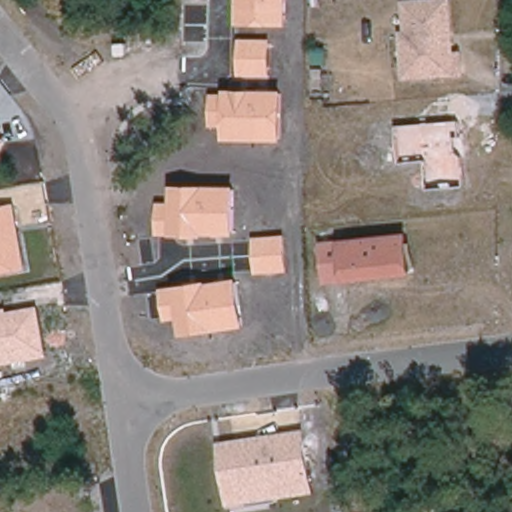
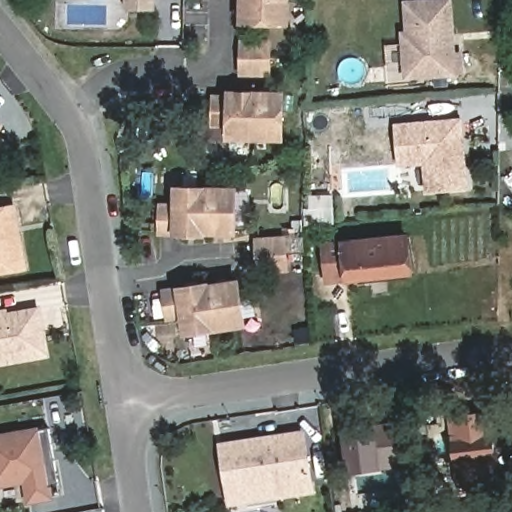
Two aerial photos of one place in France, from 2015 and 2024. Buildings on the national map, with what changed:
new [(126,7),(126,0),(157,0),(157,7),(126,7)]
unchanged [(288,24),(238,25),(238,0),(288,0),(288,24)]
unchanged [(449,2),(452,56),(459,55),(459,73),(406,77),(403,35),(407,34),(407,4),(449,2)]
unchanged [(270,76),(238,76),(239,39),(272,39),(270,76)]
unchanged [(227,95),(227,90),(285,90),(285,141),(226,140),(226,128),(209,127),(211,93),(227,95)]
unchanged [(428,188),(425,161),(399,163),(397,125),(460,120),(461,137),(454,138),(456,151),(462,156),(464,186),(428,188)]
unchanged [(0,129),(0,123),(3,124),(0,129)]
unchanged [(0,156),(0,136),(9,140),(0,156)]
unchanged [(172,201),(173,185),(206,185),(237,186),(237,233),(204,233),(204,235),(172,235),(156,235),(158,201),(172,201)]
unchanged [(26,269),(0,274),(0,206),(15,203),(26,269)]
unchanged [(319,242),(340,240),(408,232),(412,273),(345,281),(324,283),(319,242)]
unchanged [(285,235),(288,272),(254,273),(252,237),(285,235)]
unchanged [(208,283),(240,278),(246,326),(215,330),(182,335),(179,319),(165,321),(160,287),(176,285),(208,281),(208,283)]
unchanged [(47,356),(0,365),(0,309),(6,308),(8,311),(38,306),(47,356)]
new [(489,418),(498,480),(465,484),(457,422),(489,418)]
new [(25,483),(0,487),(0,432),(43,425),(43,429),(50,428),(59,483),(53,484),(56,497),(28,503),(25,483)]
unchanged [(225,506),(216,442),(304,428),(315,493),(225,506)]
new [(407,429),(408,433),(412,466),(355,473),(350,436),(395,430),(407,429)]

